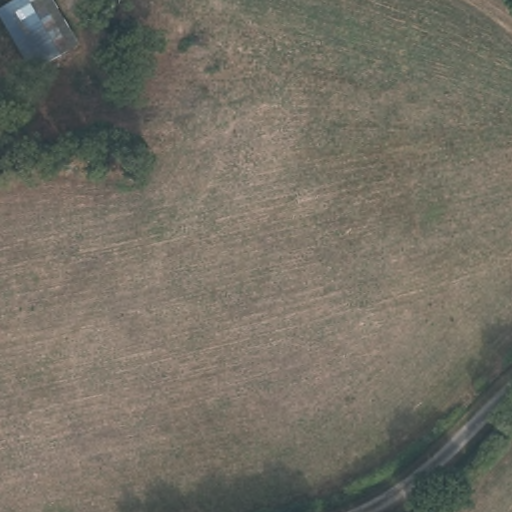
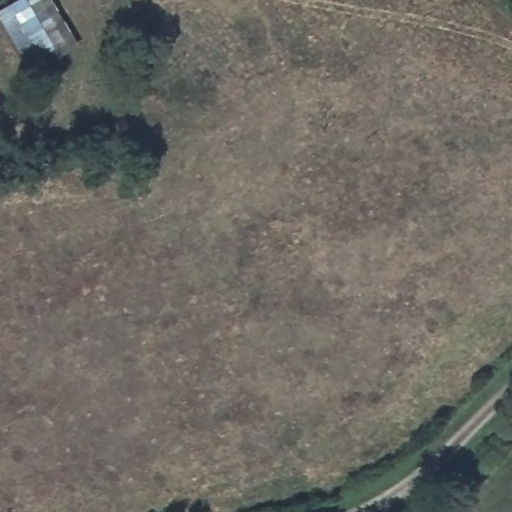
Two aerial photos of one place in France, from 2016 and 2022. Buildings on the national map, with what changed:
unchanged [(33,72),(0,19),(0,10),(17,0),(54,0),(79,45),(33,72)]

